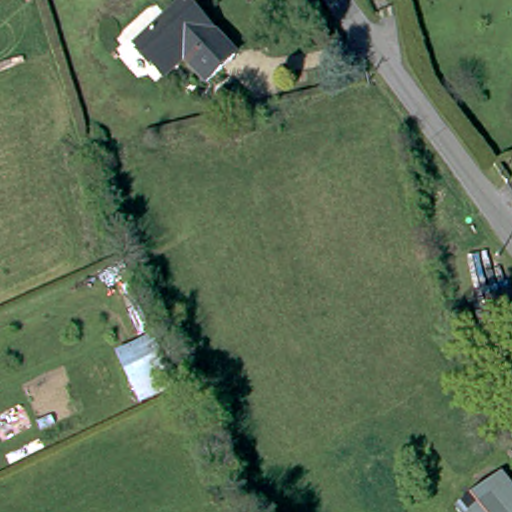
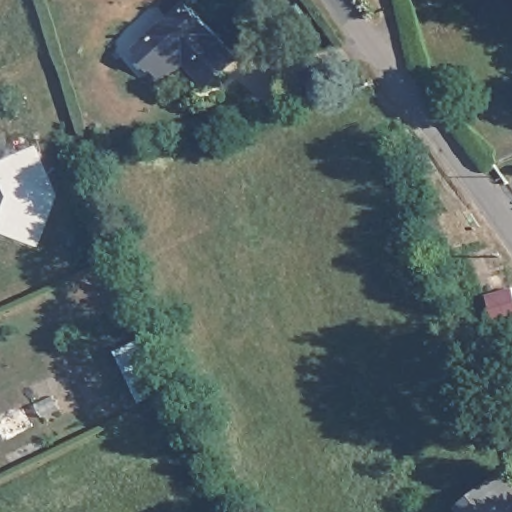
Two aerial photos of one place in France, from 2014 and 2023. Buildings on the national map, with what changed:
unchanged [(143,44),(191,1),(238,56),(211,82),(180,46),(159,64),(143,44)]
new [(56,199),(36,250),(0,237),(0,211),(4,200),(0,190),(0,164),(34,149),(56,199)]
unchanged [(512,298),(512,323),(494,329),(489,312),(487,306),(486,302),(511,294),(512,298)]
unchanged [(512,493),(512,512),(462,512),(502,480),(512,493)]

